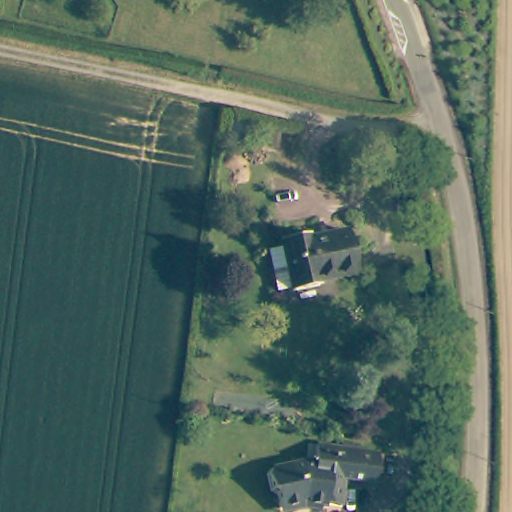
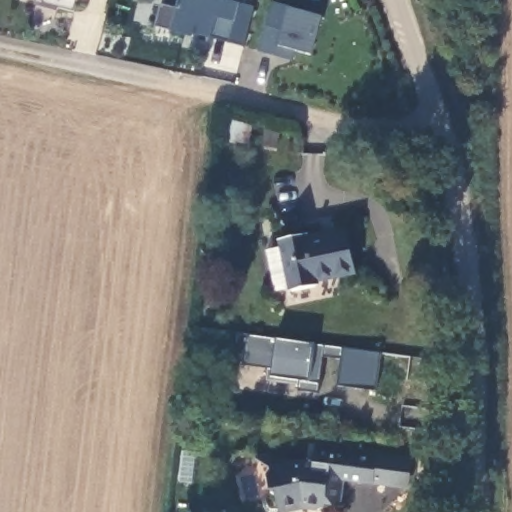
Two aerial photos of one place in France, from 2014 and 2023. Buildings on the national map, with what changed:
new [(45,4),(46,0),(75,0),(73,11),(45,4)]
new [(180,0),(237,0),(242,1),(237,24),(232,42),(212,39),(196,35),(195,39),(172,33),(172,30),(157,26),(162,5),(177,9),(180,0)]
new [(312,56),(297,51),(294,61),(260,52),(266,25),(282,31),(289,7),(323,17),(312,56)]
unchanged [(282,243),(298,241),(300,232),(325,227),(331,234),(361,227),(370,267),(337,273),(337,281),(307,288),(307,284),(287,287),(282,243)]
new [(376,391),(339,386),(342,361),(325,358),(320,395),(300,391),(302,381),(273,376),(275,370),(244,365),(249,335),(279,338),(316,344),(382,354),(376,391)]
unchanged [(375,452),(371,484),(342,481),(340,510),(320,508),(319,512),(298,512),(292,505),(277,510),(271,475),(296,468),(310,470),(312,446),(375,452)]
new [(375,452),(410,456),(407,488),(371,484),(375,452)]

